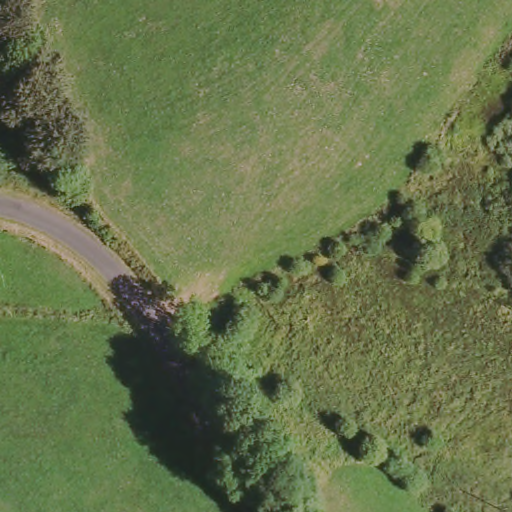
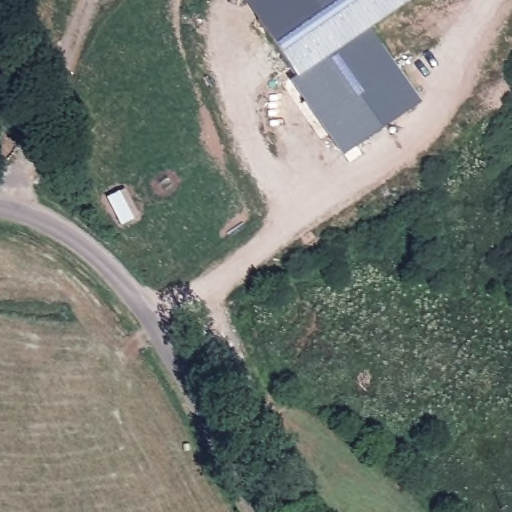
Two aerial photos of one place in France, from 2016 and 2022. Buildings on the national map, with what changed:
new [(417,99),(342,158),(247,0),(411,0),(370,28),(417,99)]

